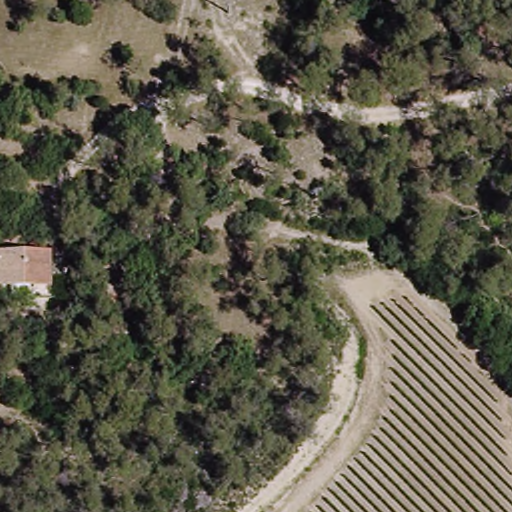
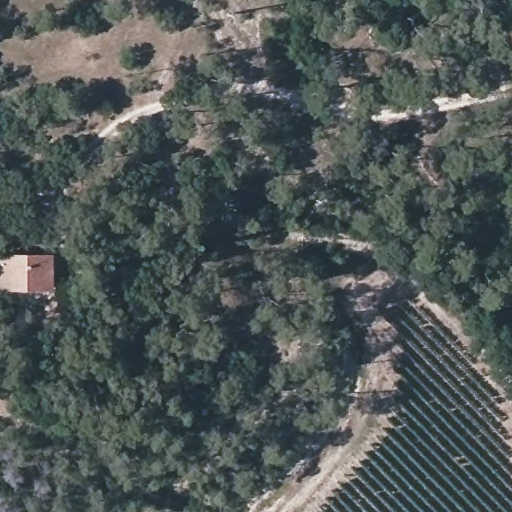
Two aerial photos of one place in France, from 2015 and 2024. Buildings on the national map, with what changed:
unchanged [(52,298),(0,299),(0,254),(55,253),(52,298)]

